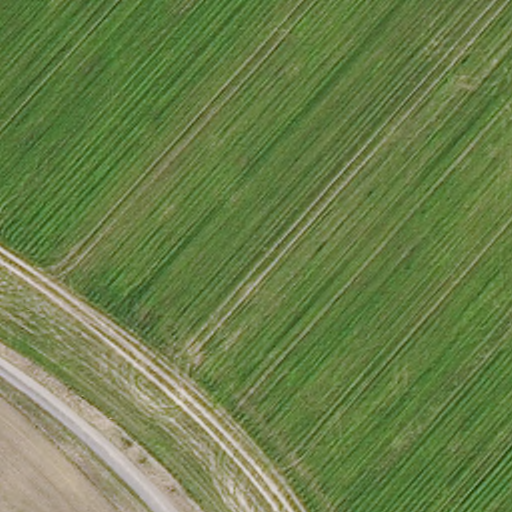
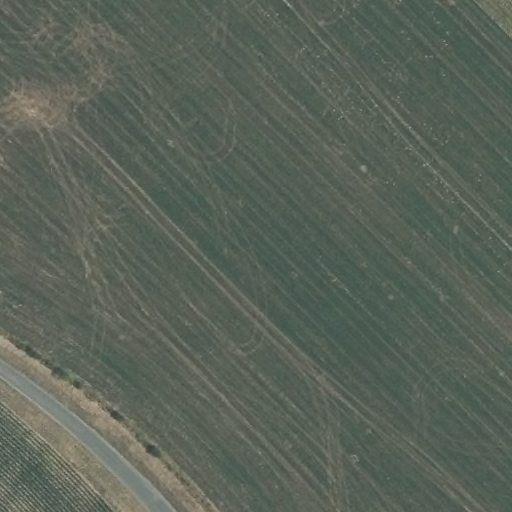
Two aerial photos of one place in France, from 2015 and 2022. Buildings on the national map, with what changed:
[]

